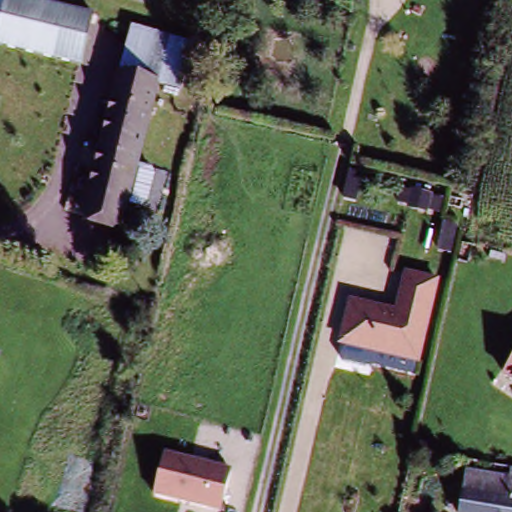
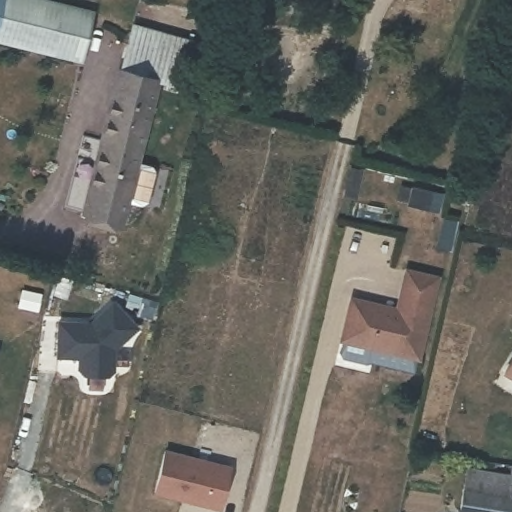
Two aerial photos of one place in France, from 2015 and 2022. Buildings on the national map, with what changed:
unchanged [(79,60),(0,41),(0,0),(41,0),(90,11),(79,60)]
unchanged [(152,77),(116,68),(124,29),(182,41),(174,84),(151,80),(152,77)]
unchanged [(151,80),(132,166),(147,170),(151,176),(143,211),(137,214),(122,211),(120,220),(80,212),(112,67),(116,68),(152,77),(151,80)]
unchanged [(352,298),(398,310),(408,273),(437,280),(418,359),(343,340),(352,298)]
new [(59,322),(77,322),(77,328),(86,328),(115,302),(139,328),(116,349),(114,372),(109,376),(84,375),(79,370),(80,358),(57,356),(59,322)]
unchanged [(509,369),(512,365),(512,371),(509,369)]
unchanged [(230,469),(219,512),(152,495),(163,452),(230,469)]
unchanged [(469,477),(472,458),(512,468),(512,488),(469,477)]
unchanged [(465,497),(469,477),(512,488),(512,508),(465,497)]

